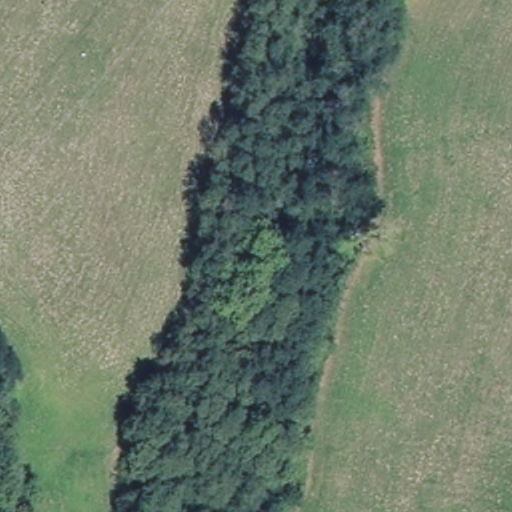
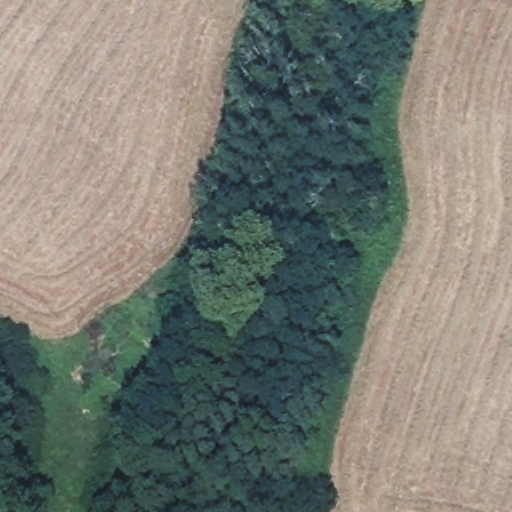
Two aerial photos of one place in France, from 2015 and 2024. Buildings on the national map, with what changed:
[]

